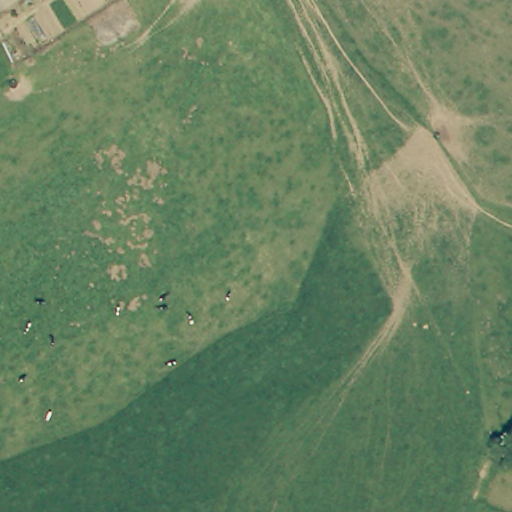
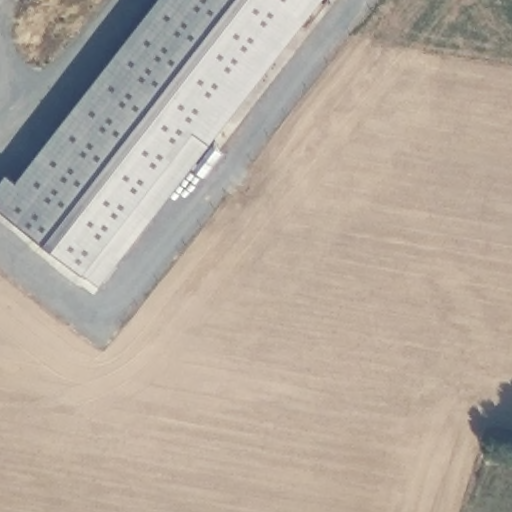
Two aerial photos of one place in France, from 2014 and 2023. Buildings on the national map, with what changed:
new [(0,211),(0,185),(7,176),(20,182),(160,0),(326,0),(100,287),(0,211)]

